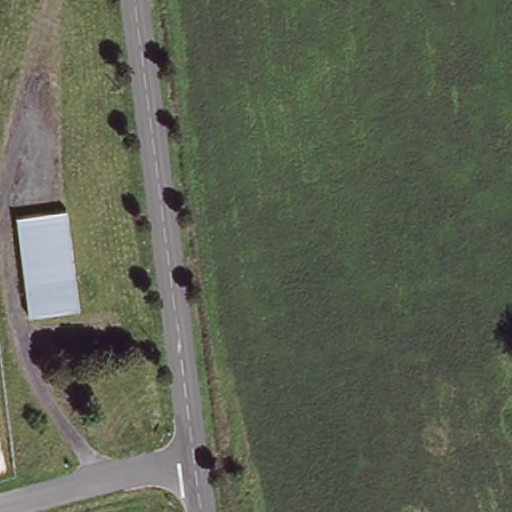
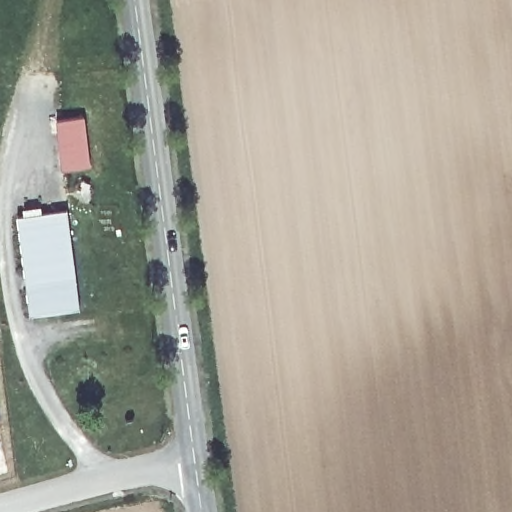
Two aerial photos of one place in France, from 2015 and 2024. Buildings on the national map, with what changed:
new [(62,171),(56,121),(85,117),(91,167),(62,171)]
unchanged [(83,316),(31,322),(20,223),(71,218),(83,316)]

